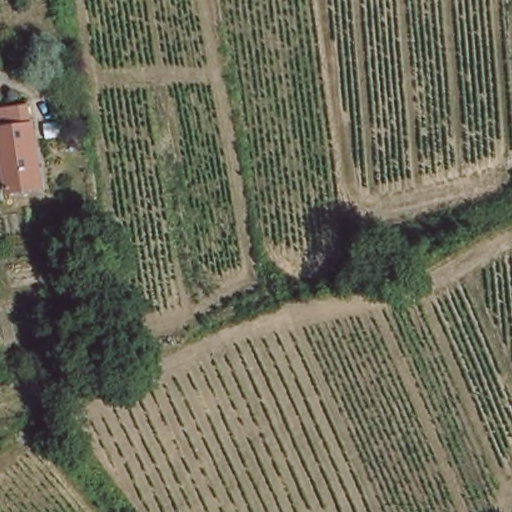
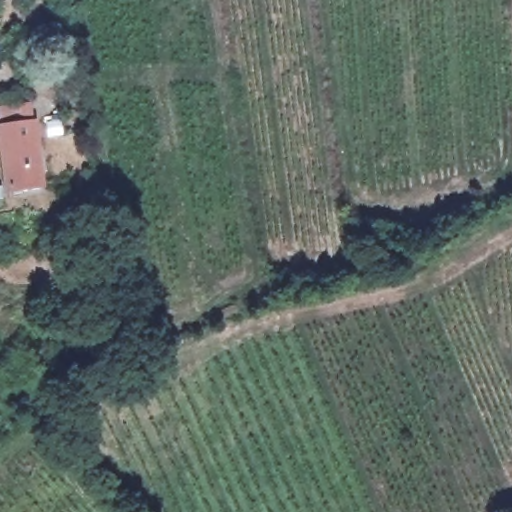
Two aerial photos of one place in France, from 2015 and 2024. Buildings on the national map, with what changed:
unchanged [(0,163),(0,114),(31,111),(39,190),(4,193),(0,163)]

